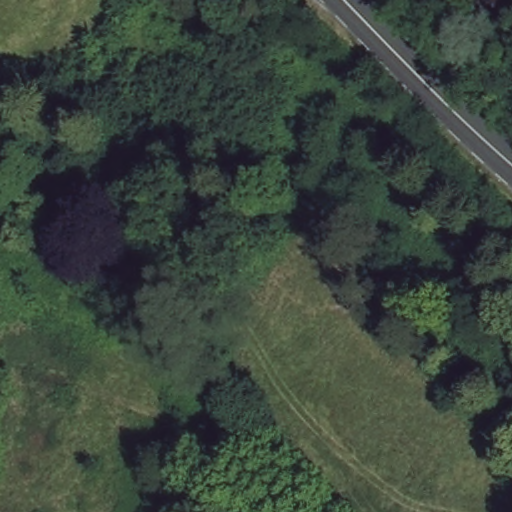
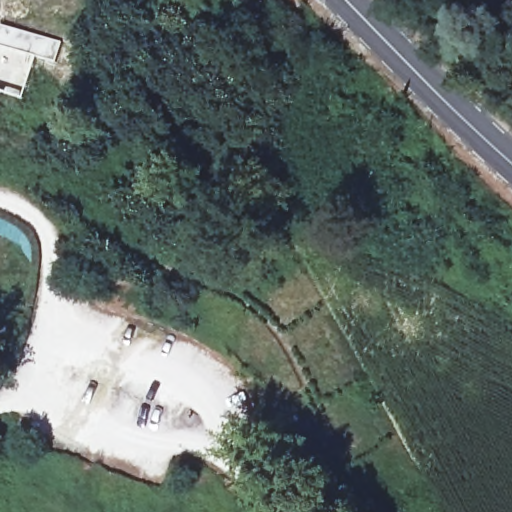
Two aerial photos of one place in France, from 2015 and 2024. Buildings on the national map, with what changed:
new [(35,34),(32,42),(26,40),(22,51),(36,56),(25,92),(21,91),(20,94),(7,91),(9,83),(0,81),(0,24),(35,34)]

